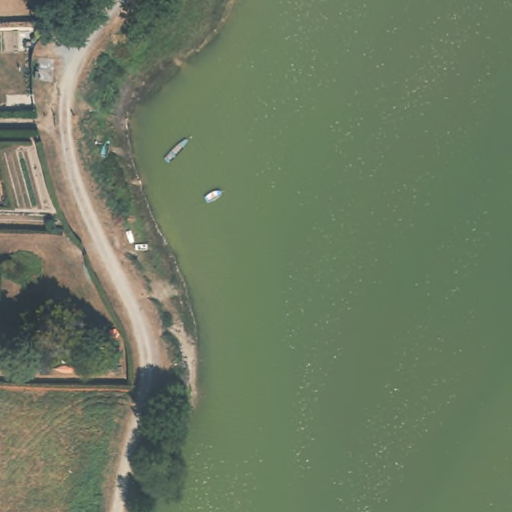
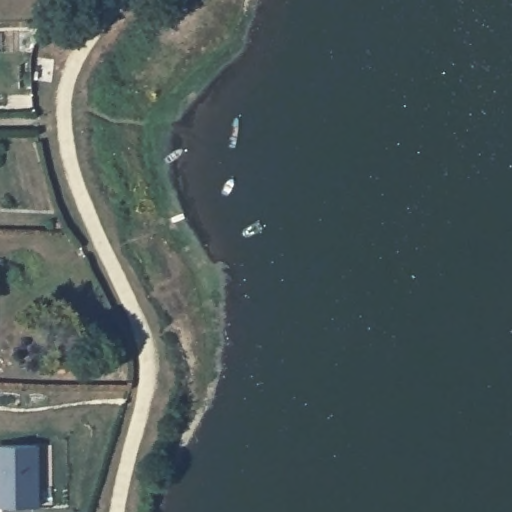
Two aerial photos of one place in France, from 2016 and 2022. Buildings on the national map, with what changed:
new [(0,506),(0,445),(38,445),(40,506),(0,506)]

